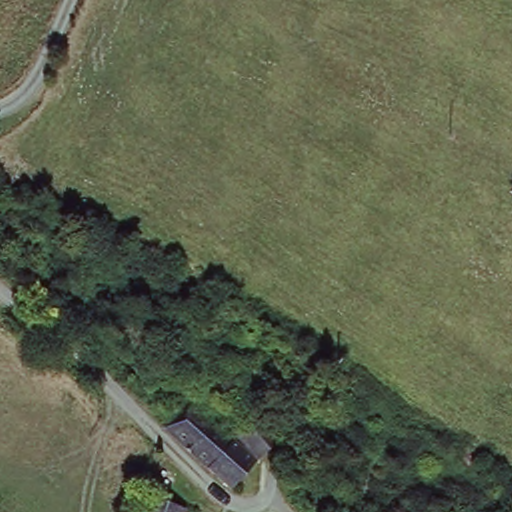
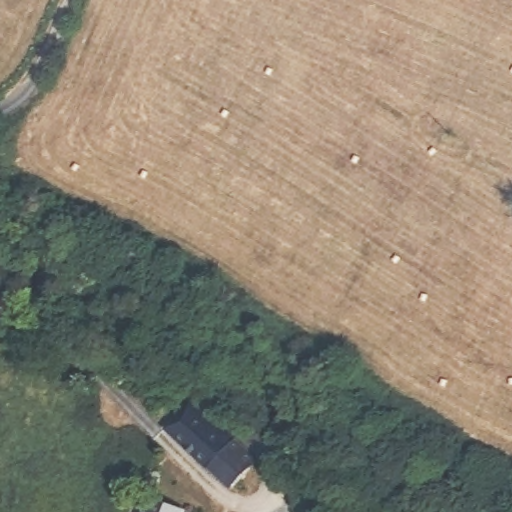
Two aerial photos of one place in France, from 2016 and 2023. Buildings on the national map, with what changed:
unchanged [(201,397),(257,466),(232,486),(175,419),(201,397)]
unchanged [(260,477),(276,494),(258,509),(244,491),(260,477)]
unchanged [(187,507),(185,512),(148,512),(154,496),(187,507)]

